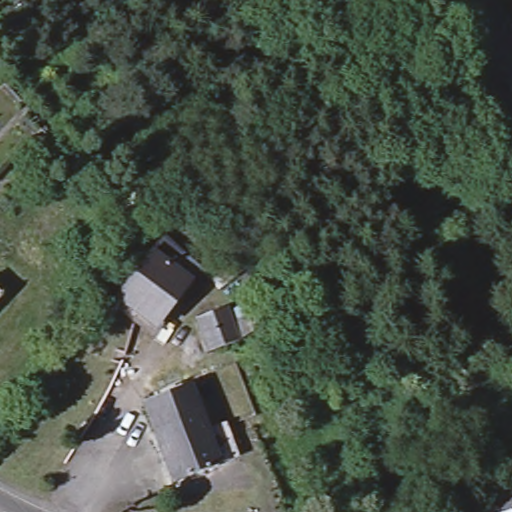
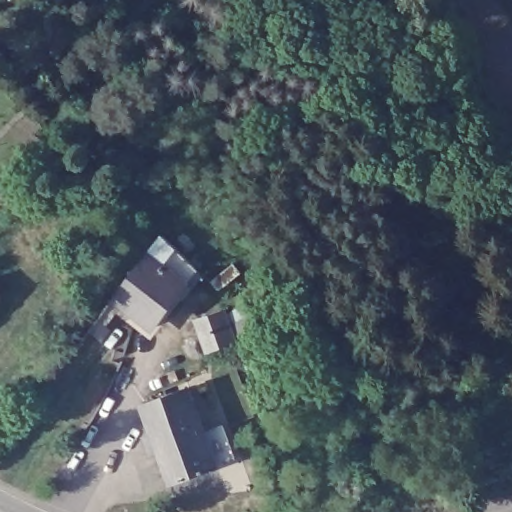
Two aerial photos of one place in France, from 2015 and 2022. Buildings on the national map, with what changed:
unchanged [(198,266),(152,324),(113,295),(161,232),(198,266)]
unchanged [(14,309),(5,319),(0,315),(0,306),(5,301),(14,309)]
unchanged [(228,328),(259,309),(267,322),(234,344),(204,354),(191,321),(221,311),(228,328)]
unchanged [(241,456),(222,463),(223,464),(178,479),(149,402),(195,385),(211,430),(230,423),(241,456)]

